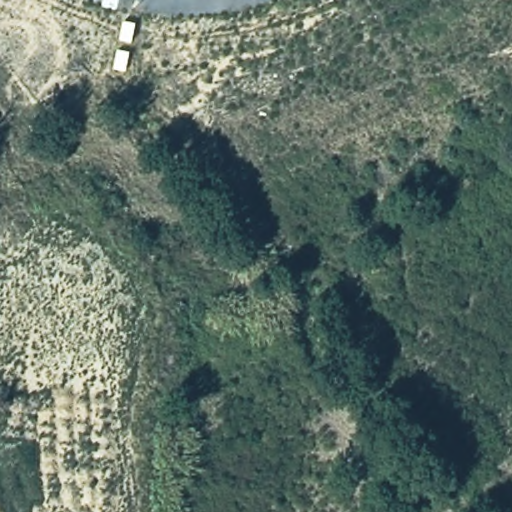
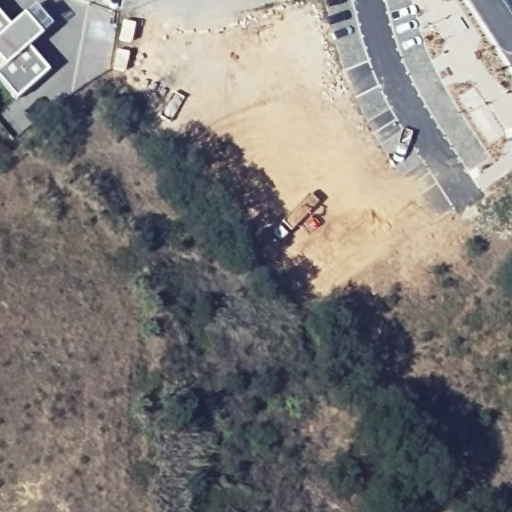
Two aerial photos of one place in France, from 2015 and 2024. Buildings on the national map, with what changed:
new [(512,0),(512,12),(504,0),(512,0)]
new [(10,25),(23,14),(42,34),(29,47),(48,70),(16,99),(0,81),(0,14),(10,25)]

